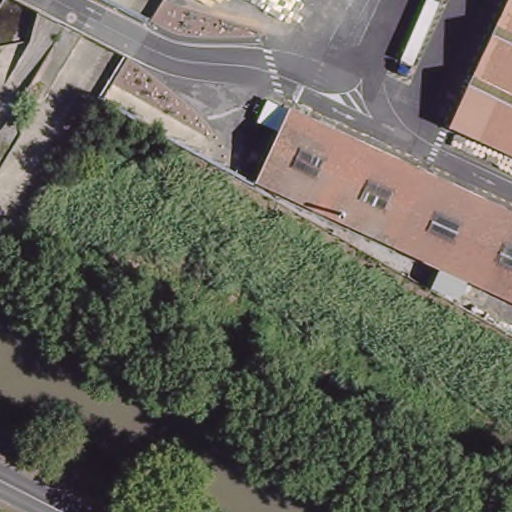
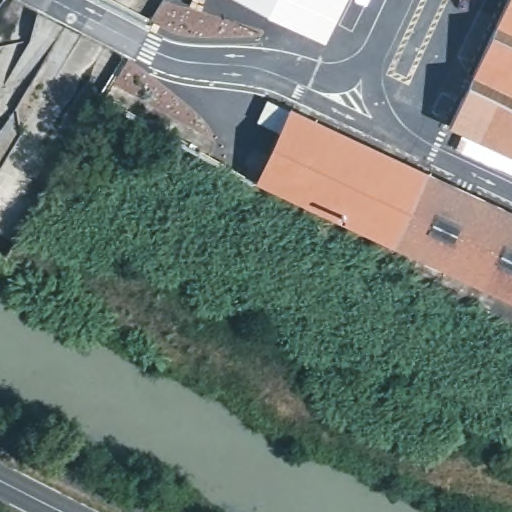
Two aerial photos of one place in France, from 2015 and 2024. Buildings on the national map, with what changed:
new [(326,40),(242,0),(346,0),(326,40)]
unchanged [(455,125),(512,3),(512,153),(455,125)]
unchanged [(267,183),(297,113),(512,213),(512,297),(267,183)]

